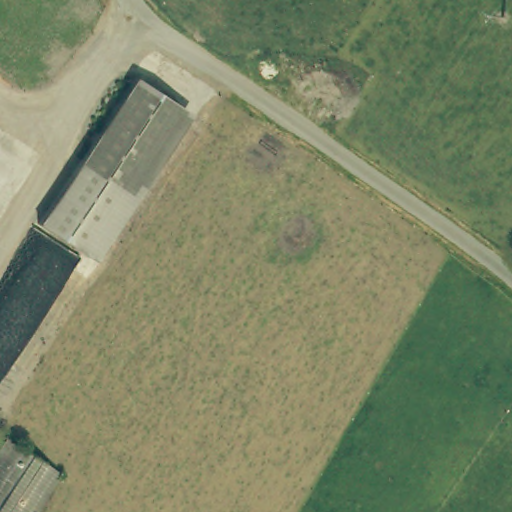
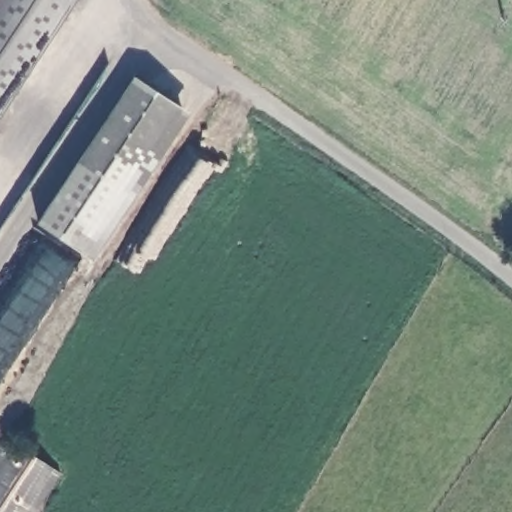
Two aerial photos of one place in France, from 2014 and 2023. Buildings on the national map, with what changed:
new [(0,0),(69,0),(0,104),(0,0)]
unchanged [(36,230),(130,81),(173,107),(79,257),(36,230)]
unchanged [(173,107),(184,115),(90,264),(79,257),(173,107)]
unchanged [(60,474),(35,512),(10,512),(0,506),(0,450),(7,440),(60,474)]
unchanged [(0,506),(10,512),(0,512),(0,506)]

